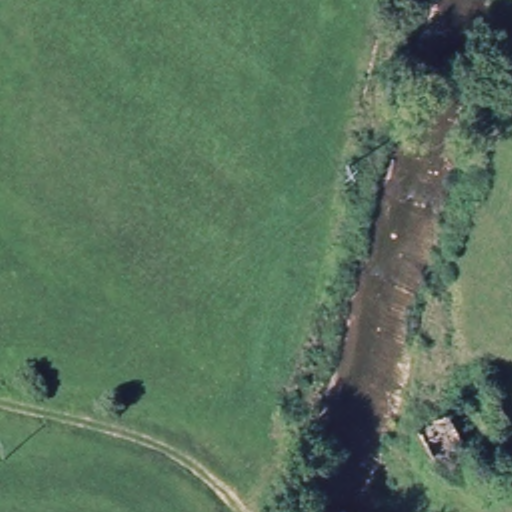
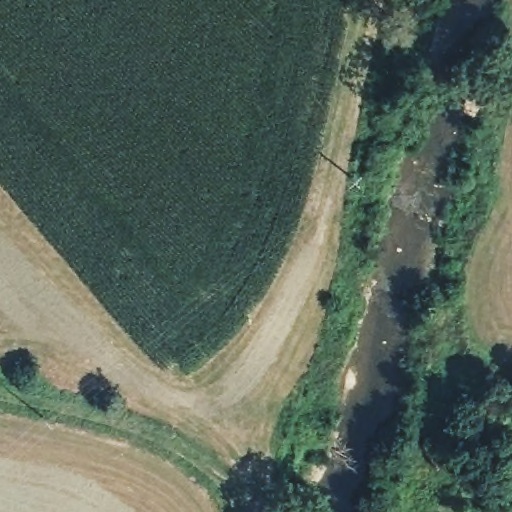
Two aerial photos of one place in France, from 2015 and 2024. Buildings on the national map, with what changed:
unchanged [(420,443),(455,424),(473,457),(438,474),(420,443)]

